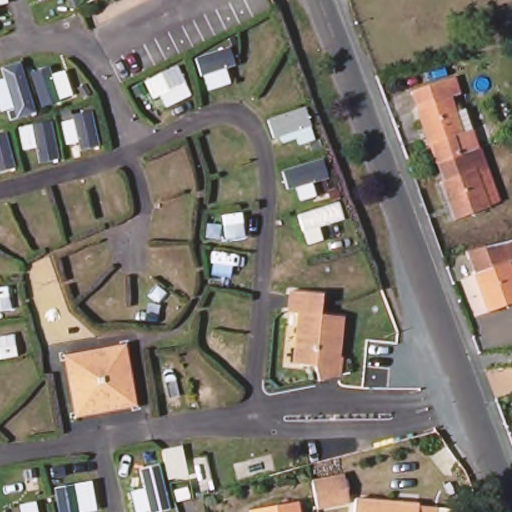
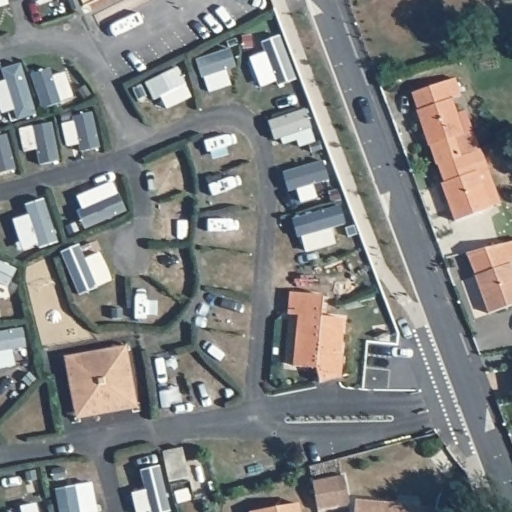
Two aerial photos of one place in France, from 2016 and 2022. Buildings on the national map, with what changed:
unchanged [(413,95),(455,81),(461,100),(453,103),(457,115),(467,112),(473,132),(455,139),(462,161),(441,166),(437,168),(413,95)]
unchanged [(491,213),(457,224),(443,186),(447,185),(441,166),(462,161),(484,155),(491,173),(501,209),(491,213)]
unchanged [(512,274),(512,307),(488,315),(476,280),(477,276),(468,254),(512,243),(512,266),(510,267),(512,274)]
unchanged [(320,292),(321,313),(341,314),(341,354),(343,354),(344,373),(323,378),(319,366),(299,366),(300,315),(288,315),(288,291),(320,292)]
unchanged [(84,409),(80,410),(77,406),(76,402),(73,403),(67,374),(71,373),(70,368),(72,364),(76,364),(75,358),(111,350),(112,356),(117,355),(120,360),(121,364),(125,363),(131,390),(126,391),(127,396),(126,399),(121,401),(122,408),(86,415),(84,409)]
unchanged [(182,452),(191,481),(171,486),(164,457),(182,452)]
unchanged [(343,480),(350,508),(331,512),(319,512),(313,486),(343,480)]
unchanged [(356,498),(418,504),(419,509),(436,511),(435,512),(354,512),(356,498)]
unchanged [(299,512),(269,512),(298,506),(299,512)]

